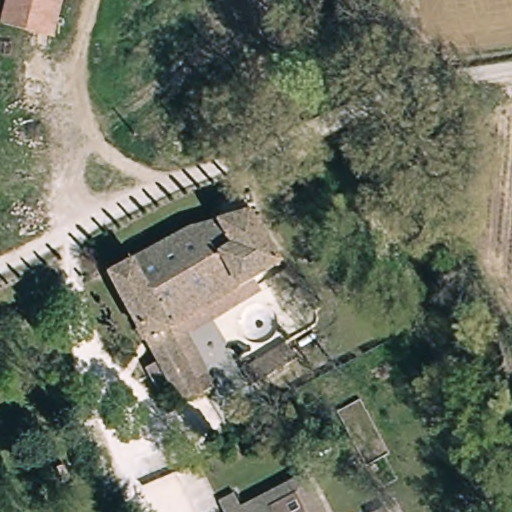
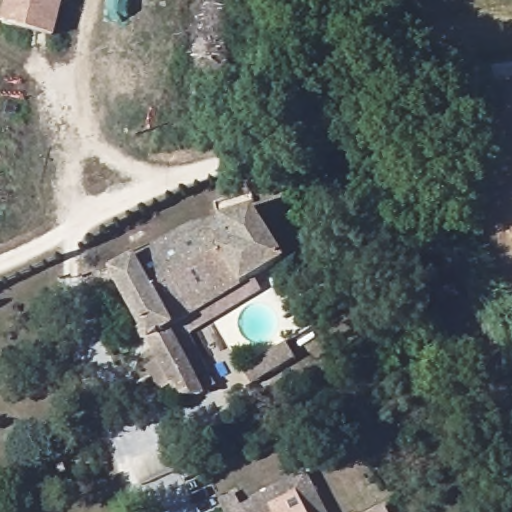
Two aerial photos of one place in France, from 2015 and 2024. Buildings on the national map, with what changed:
unchanged [(0,21),(6,0),(62,0),(51,37),(0,21)]
unchanged [(251,207),(284,260),(242,285),(223,247),(211,252),(195,222),(251,207)]
unchanged [(223,247),(242,285),(170,326),(134,256),(195,222),(211,252),(223,247)]
unchanged [(170,326),(147,340),(109,270),(134,256),(170,326)]
unchanged [(214,385),(204,390),(182,402),(147,340),(170,326),(197,379),(207,372),(214,385)]
unchanged [(294,356),(249,383),(242,372),(287,345),(294,356)]
unchanged [(247,510),(234,489),(252,478),(262,493),(305,469),(330,512),(244,512),(247,510)]
unchanged [(219,510),(216,505),(224,499),(229,505),(232,503),(237,512),(216,512),(219,510)]

